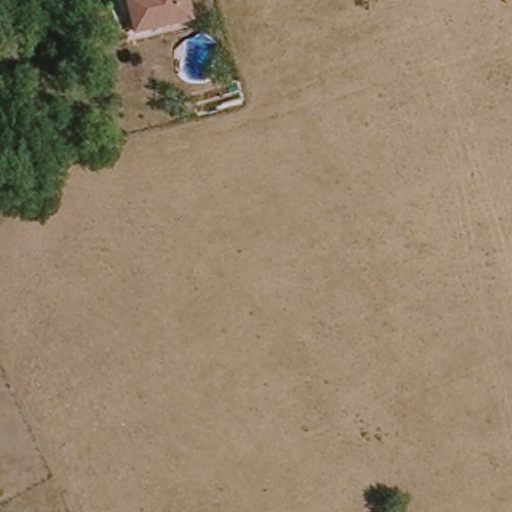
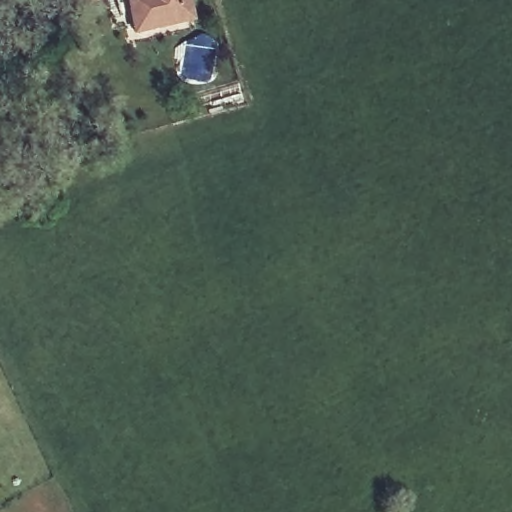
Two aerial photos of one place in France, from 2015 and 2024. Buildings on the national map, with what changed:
unchanged [(130,0),(187,0),(192,20),(137,32),(130,0)]

